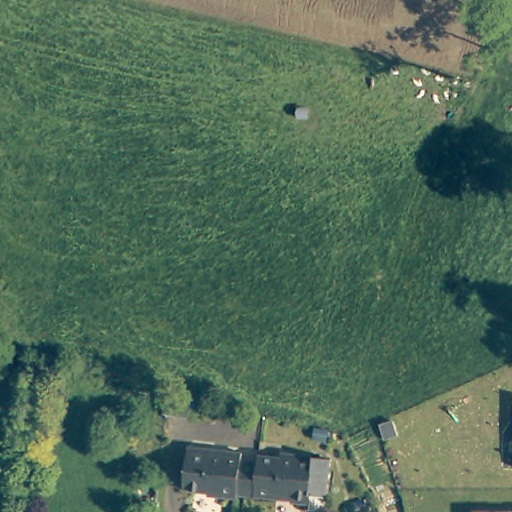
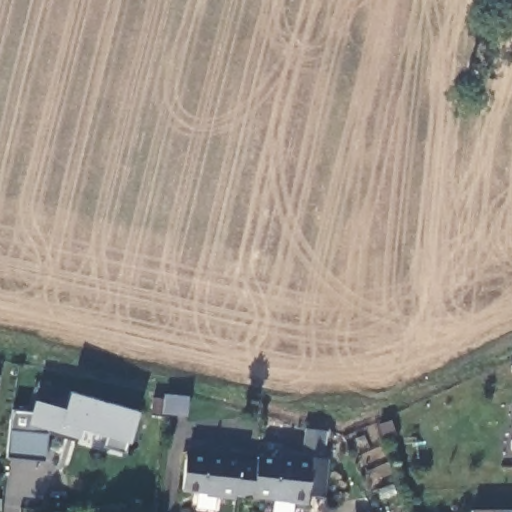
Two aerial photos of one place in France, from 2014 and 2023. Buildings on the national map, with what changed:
unchanged [(180,397),(182,380),(204,382),(204,386),(203,400),(180,397)]
new [(8,457),(13,411),(32,412),(36,399),(66,407),(71,391),(140,410),(131,442),(125,452),(105,447),(111,436),(82,427),(79,438),(76,441),(48,435),(45,460),(8,457)]
unchanged [(246,460),(262,462),(259,493),(258,496),(241,494),(241,497),(222,495),(223,492),(188,488),(192,453),(214,456),(215,448),(246,452),(246,460)]
unchanged [(263,456),(285,458),(286,452),(334,458),(330,496),(314,494),(313,503),(295,501),(296,498),(259,493),(262,462),(263,456)]

